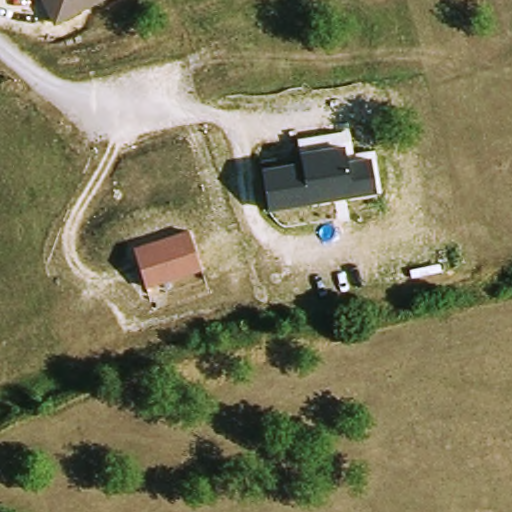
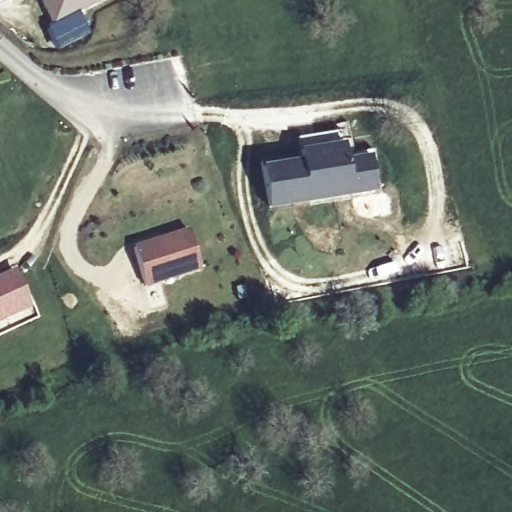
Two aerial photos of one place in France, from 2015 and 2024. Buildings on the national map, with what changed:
unchanged [(42,0),(101,0),(54,24),(42,0)]
unchanged [(302,161),(297,136),(349,128),(353,154),(377,149),(385,190),(268,211),(262,168),(302,161)]
unchanged [(187,228),(201,268),(145,285),(133,246),(187,228)]
new [(0,322),(0,276),(15,269),(33,307),(0,322)]

